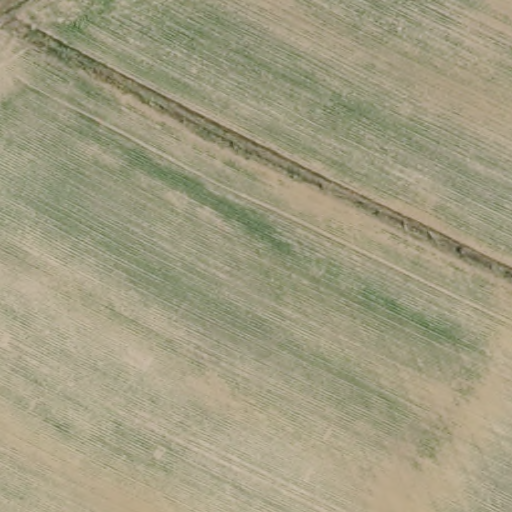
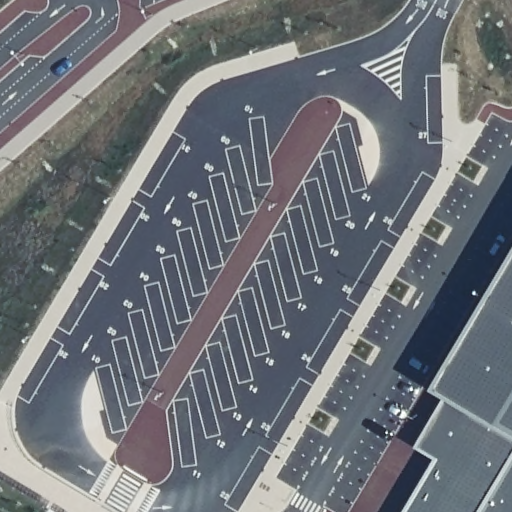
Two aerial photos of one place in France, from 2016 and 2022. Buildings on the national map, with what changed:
new [(439,387),(512,270),(512,512),(392,512),(457,398),(439,387)]

